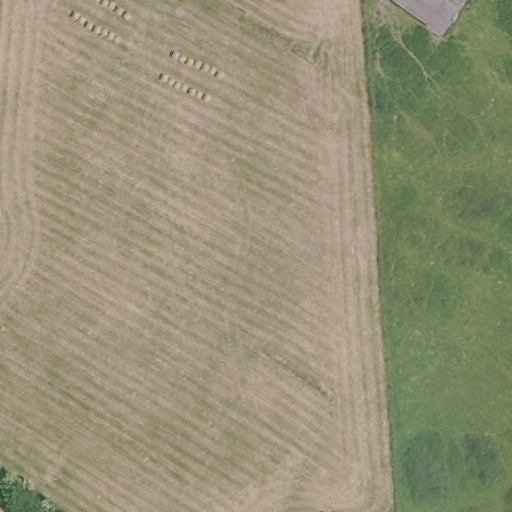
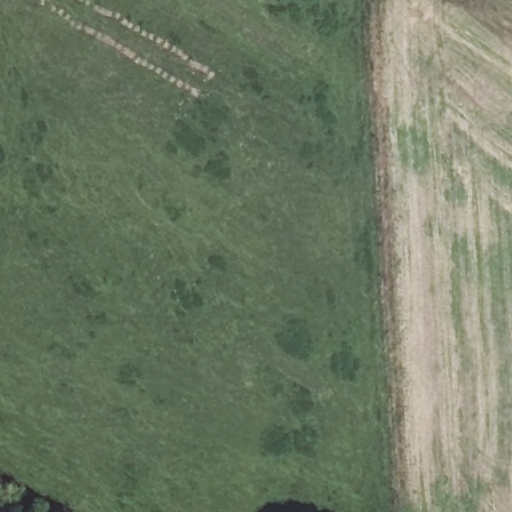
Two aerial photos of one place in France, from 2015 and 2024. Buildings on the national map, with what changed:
demolished [(440,36),(391,0),(465,0),(440,36)]

